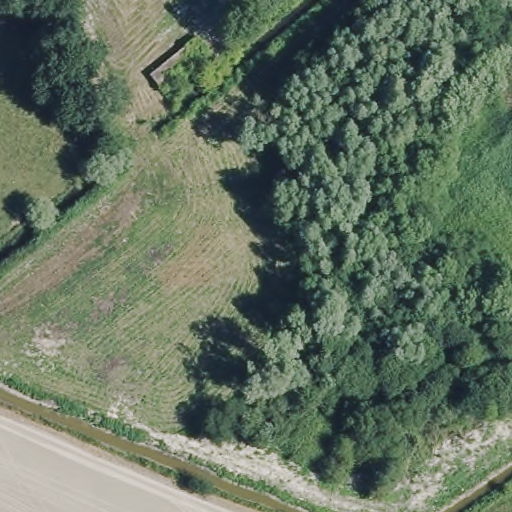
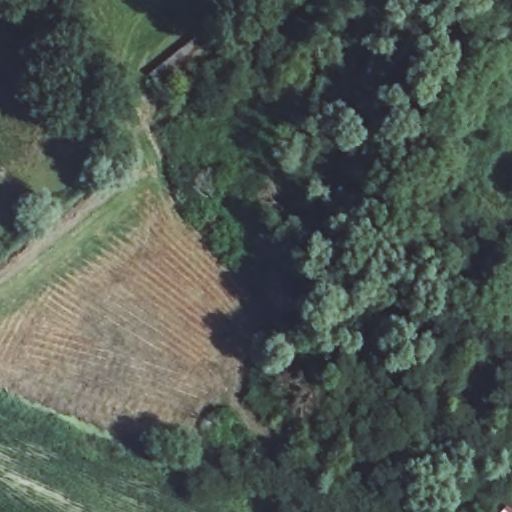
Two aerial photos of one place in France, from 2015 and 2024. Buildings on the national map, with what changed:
unchanged [(196,37),(210,55),(164,93),(150,76),(196,37)]

